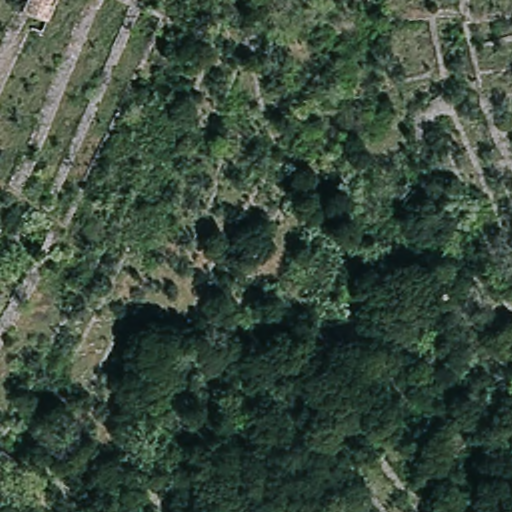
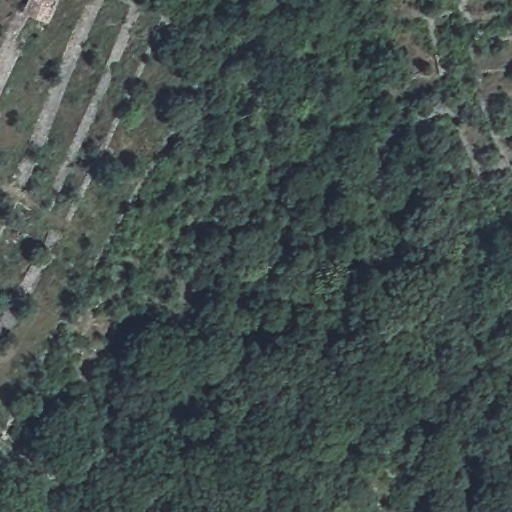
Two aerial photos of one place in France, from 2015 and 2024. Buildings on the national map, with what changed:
unchanged [(59,0),(49,24),(26,14),(32,0),(59,0)]

